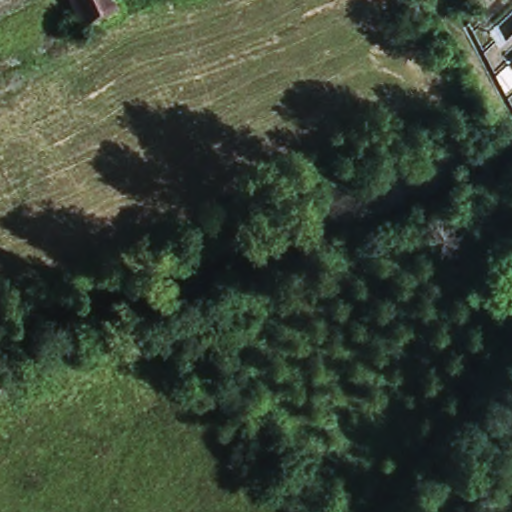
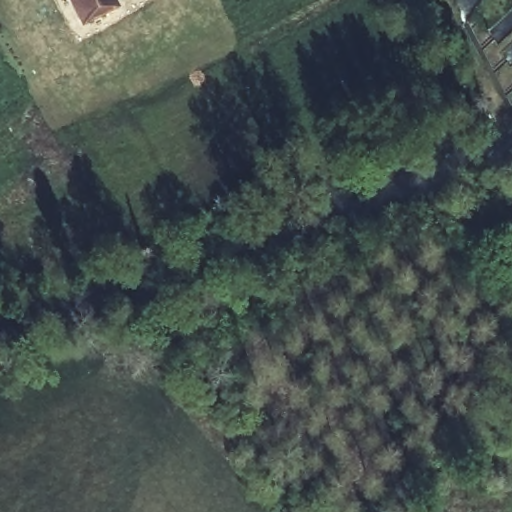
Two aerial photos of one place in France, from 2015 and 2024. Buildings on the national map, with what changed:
unchanged [(69,0),(120,0),(122,3),(81,22),(79,19),(69,0)]

